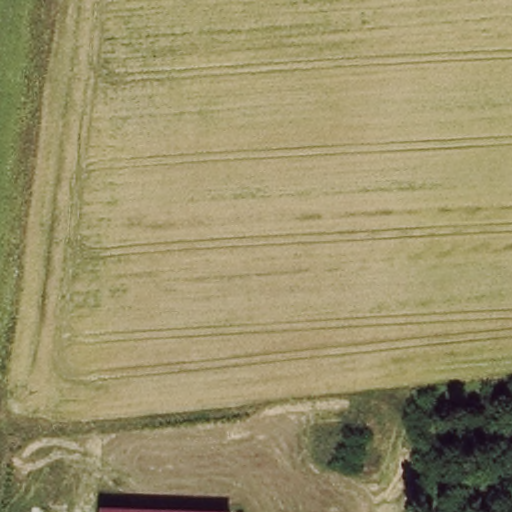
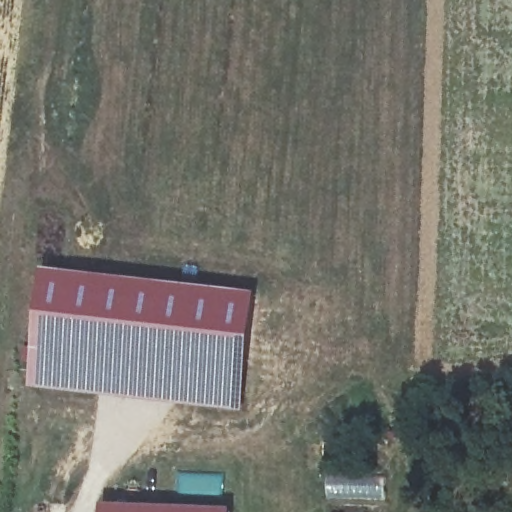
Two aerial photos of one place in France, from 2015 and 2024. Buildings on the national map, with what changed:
new [(258,293),(246,414),(32,390),(44,270),(258,293)]
unchanged [(105,506),(234,509),(234,512),(104,512),(105,506)]

